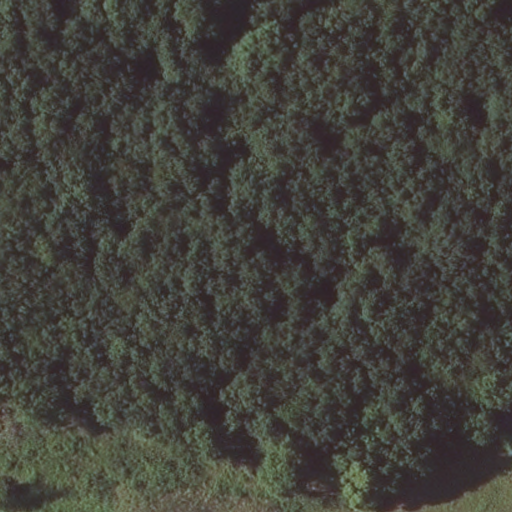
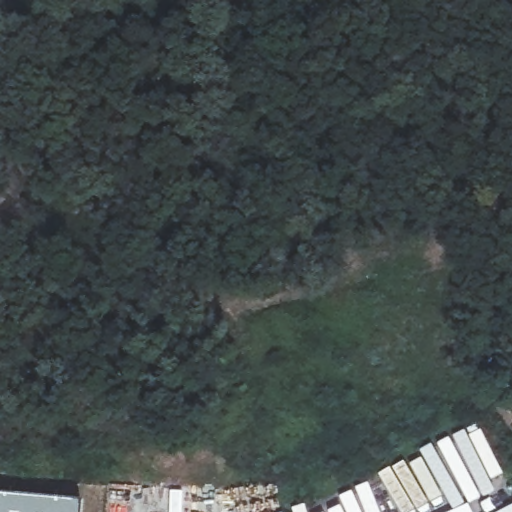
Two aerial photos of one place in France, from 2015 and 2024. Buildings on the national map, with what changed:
new [(79,503),(78,512),(0,512),(0,496),(79,503)]

